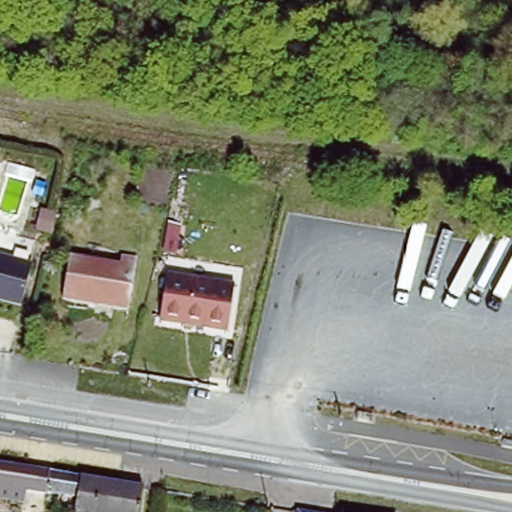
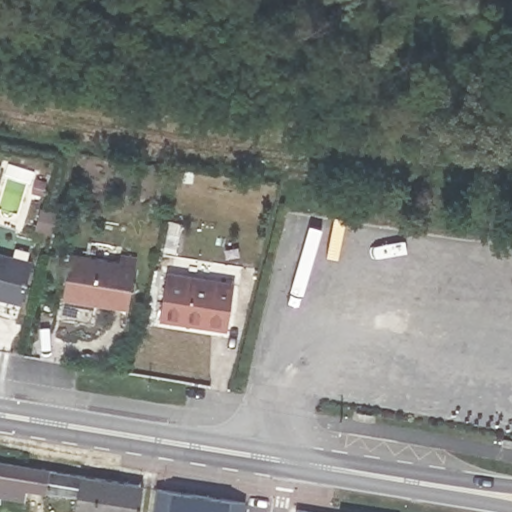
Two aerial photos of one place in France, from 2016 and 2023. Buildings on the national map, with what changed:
unchanged [(21,306),(0,301),(0,257),(32,264),(21,306)]
unchanged [(121,268),(122,260),(137,263),(127,313),(63,302),(72,259),(121,268)]
unchanged [(234,289),(226,335),(159,324),(167,278),(234,289)]
unchanged [(512,454),(512,458),(507,458),(507,454),(512,454)]
unchanged [(0,461),(47,469),(43,493),(10,488),(7,509),(0,507),(0,461)]
unchanged [(47,469),(105,479),(142,485),(137,512),(74,512),(76,499),(43,493),(47,469)]
new [(245,512),(154,512),(157,489),(247,504),(245,512)]
unchanged [(295,509),(314,512),(294,512),(295,509)]

